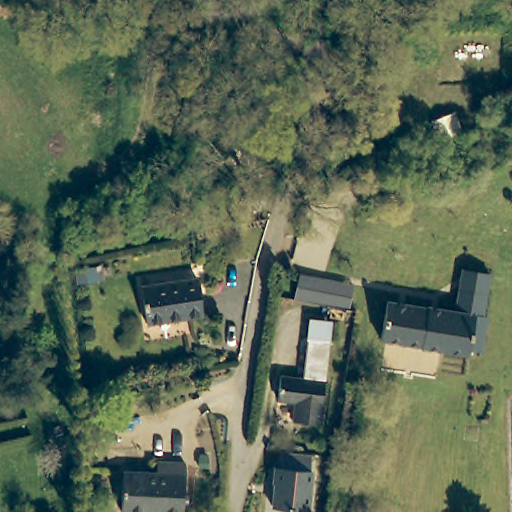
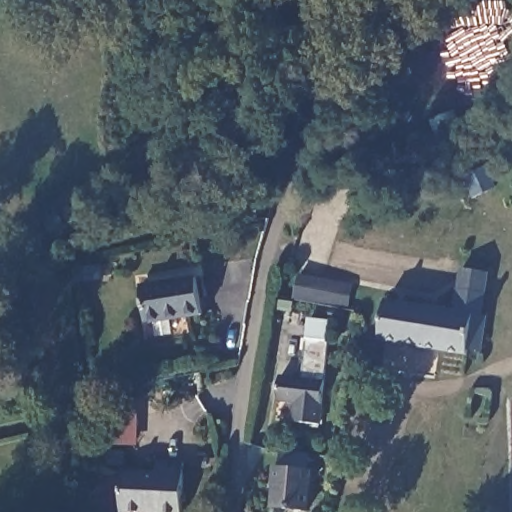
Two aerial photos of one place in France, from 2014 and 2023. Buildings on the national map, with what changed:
unchanged [(483,332),(480,350),(468,348),(467,353),(380,340),(386,299),(454,310),(458,288),(460,268),(461,267),(487,271),(486,274),(484,292),(481,313),(486,314),(483,332)]
unchanged [(348,310),(293,300),(299,274),(354,284),(348,310)]
unchanged [(139,289),(195,280),(200,318),(143,326),(139,289)]
unchanged [(293,422),(295,404),(276,402),(279,378),(302,381),(307,339),(309,320),(332,323),(330,342),(319,425),(293,422)]
unchanged [(271,509),(273,483),(271,483),(272,467),(276,467),(277,451),(311,453),(310,471),(313,472),(309,511),(271,509)]
unchanged [(153,476),(155,466),(182,468),(179,512),(118,512),(120,474),(153,476)]

